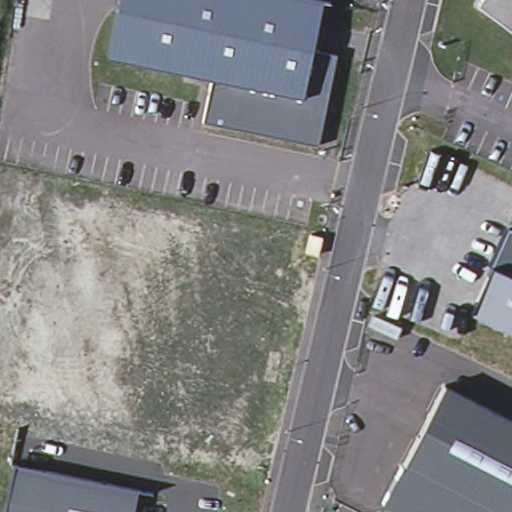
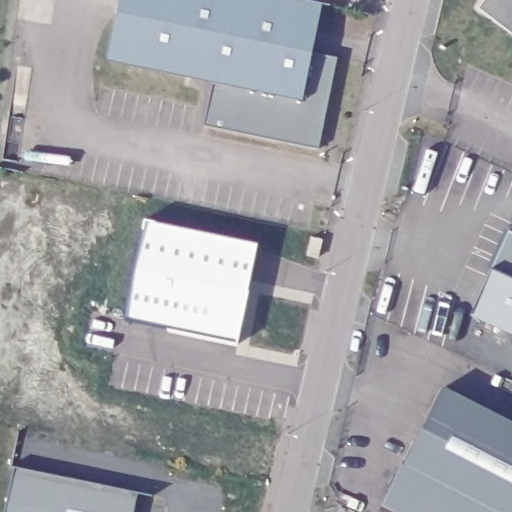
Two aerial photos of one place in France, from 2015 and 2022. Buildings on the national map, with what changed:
unchanged [(299,0),(323,5),(313,53),(336,60),(318,148),(206,124),(213,81),(109,59),(121,0),(299,0)]
unchanged [(512,0),(512,33),(478,9),(484,0),(512,0)]
new [(238,343),(125,319),(146,219),(258,243),(238,343)]
unchanged [(509,233),(512,234),(512,333),(471,314),(492,269),(509,233)]
unchanged [(321,239),(317,257),(306,254),(311,236),(321,239)]
unchanged [(512,421),(512,512),(398,512),(384,504),(446,387),(512,421)]
unchanged [(15,468),(136,493),(133,512),(6,512),(15,468)]

